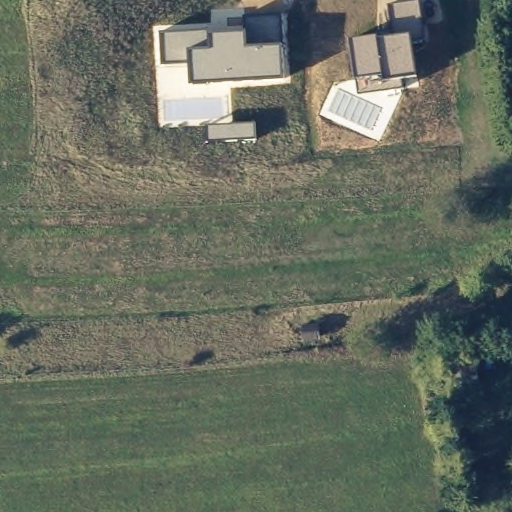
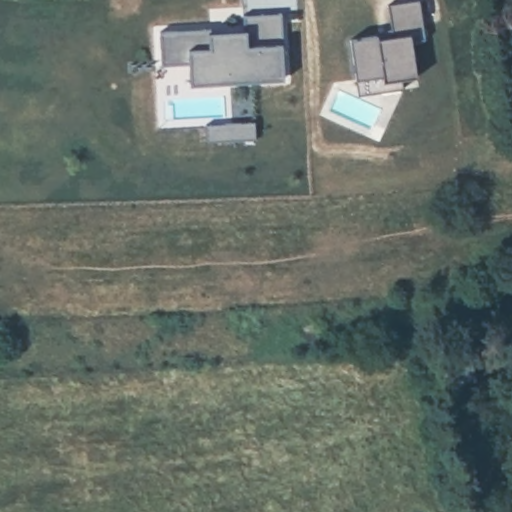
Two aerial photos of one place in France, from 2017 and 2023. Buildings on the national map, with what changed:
unchanged [(351,40),(378,35),(379,39),(393,36),(388,5),(420,0),(426,40),(412,43),(416,77),(402,79),(403,87),(359,94),(357,79),(351,40)]
unchanged [(190,65),(161,65),(161,31),(210,30),(246,27),(245,15),(280,13),(282,45),(283,79),(192,86),(190,65)]

